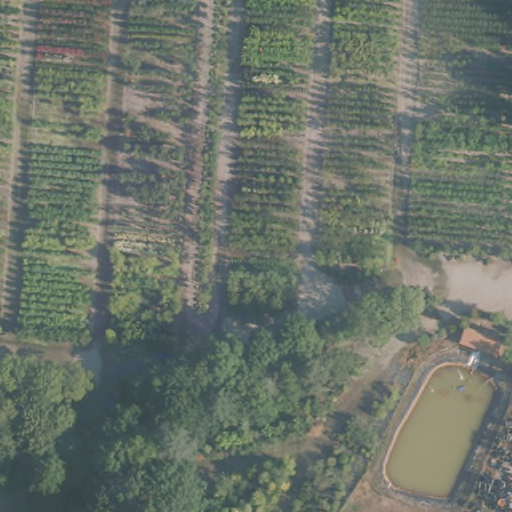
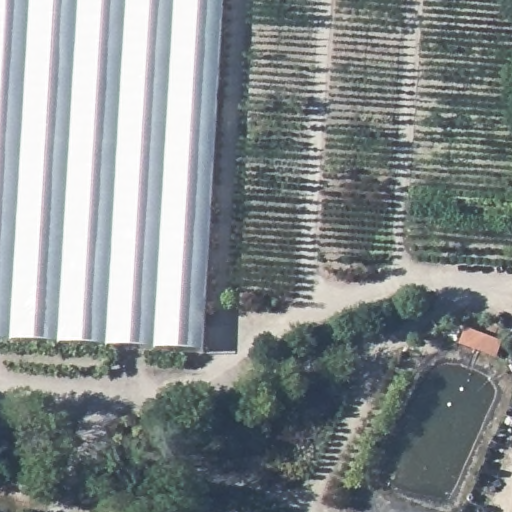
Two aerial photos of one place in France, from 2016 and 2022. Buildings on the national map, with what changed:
new [(0,342),(0,0),(224,0),(205,353),(0,342)]
unchanged [(466,329),(502,342),(497,357),(461,343),(466,329)]

